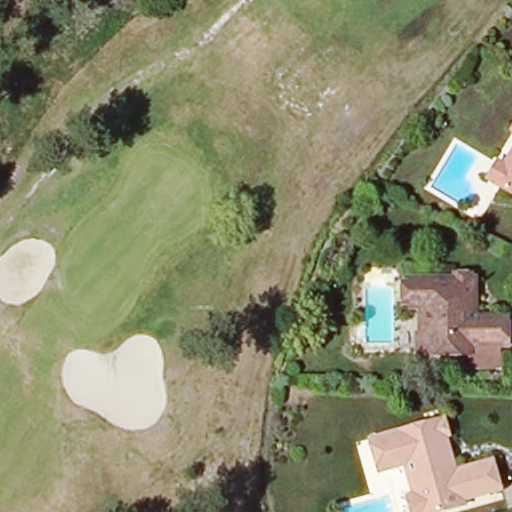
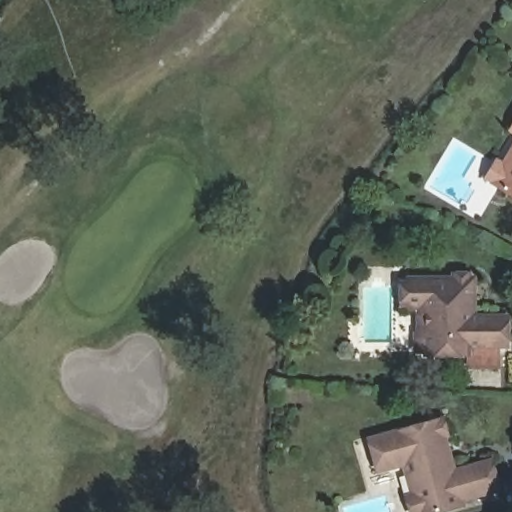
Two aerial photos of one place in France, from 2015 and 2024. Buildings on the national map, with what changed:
unchanged [(512,171),(512,195),(502,190),(491,184),(501,165),(512,171)]
unchanged [(461,274),(461,270),(477,270),(477,274),(481,274),(481,291),(475,291),(475,307),(475,313),(512,313),(512,342),(503,342),(503,363),(475,363),(475,350),(431,350),(431,347),(427,347),(422,342),(422,333),(427,328),(431,328),(431,302),(416,302),(416,298),(410,298),(410,279),(416,279),(416,274),(461,274)]
unchanged [(467,500),(468,506),(445,512),(415,512),(414,511),(413,508),(414,506),(415,503),(417,501),(419,500),(414,476),(421,474),(418,463),(381,472),(376,441),(440,423),(441,426),(450,423),(452,425),(452,426),(453,428),(455,429),(455,431),(456,433),(456,434),(456,436),(456,438),(455,440),(448,442),(451,453),(456,473),(493,463),(500,491),(467,500)]

